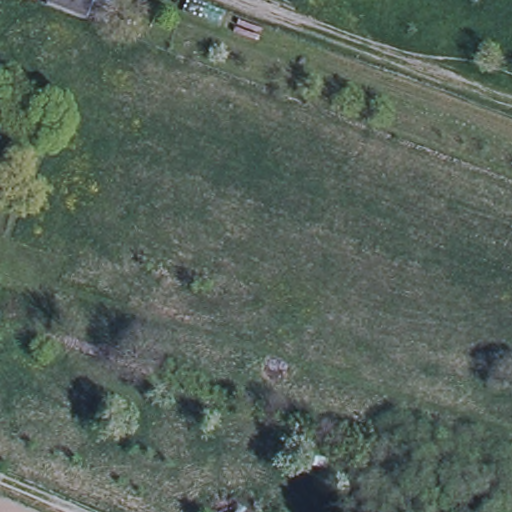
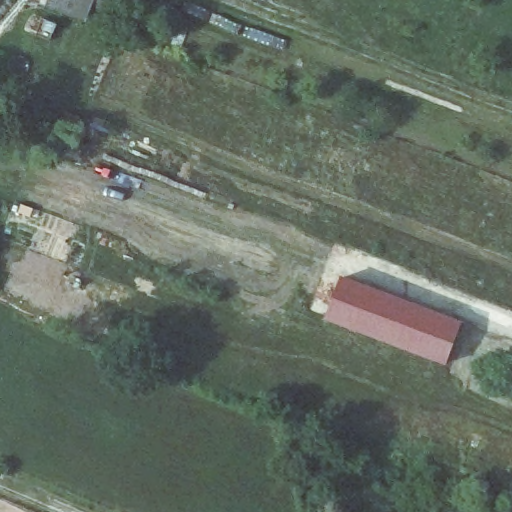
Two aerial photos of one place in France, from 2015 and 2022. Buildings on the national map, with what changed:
unchanged [(46,0),(94,0),(88,20),(44,6),(46,0)]
new [(461,320),(447,364),(324,318),(341,275),(461,320)]
unchanged [(222,512),(211,512),(213,508),(222,512)]

